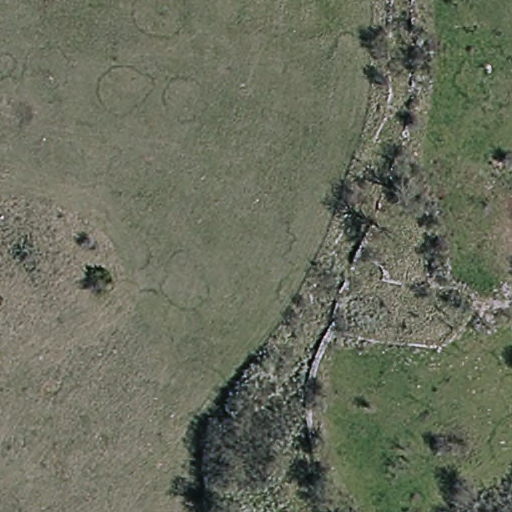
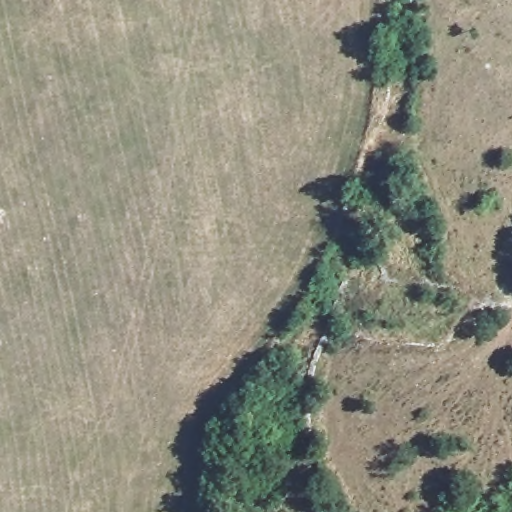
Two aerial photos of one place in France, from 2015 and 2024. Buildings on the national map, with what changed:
[]

